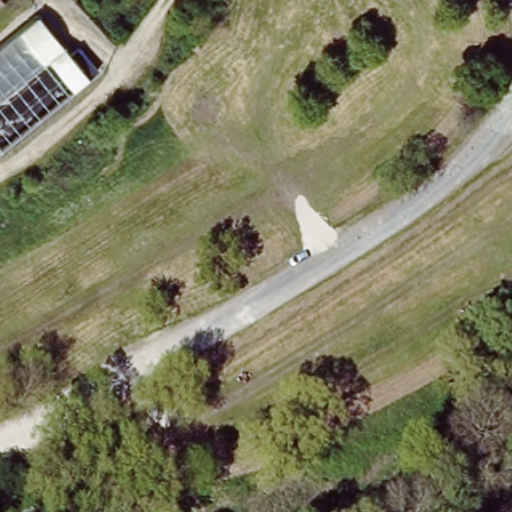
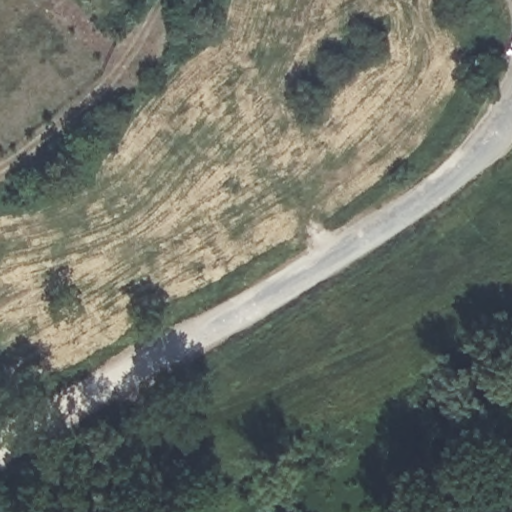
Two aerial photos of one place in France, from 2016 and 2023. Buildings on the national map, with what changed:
demolished [(32,17),(85,81),(0,141),(0,43),(32,17)]

